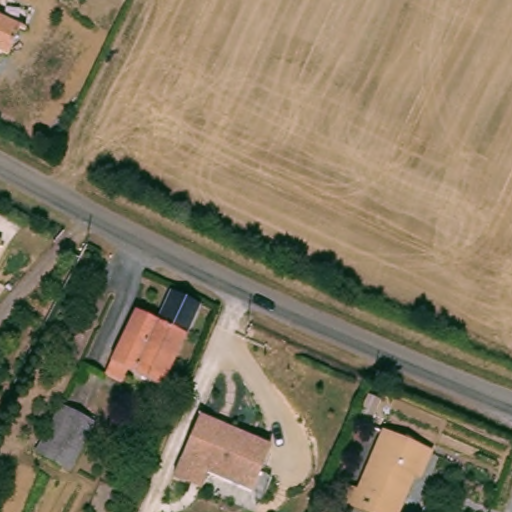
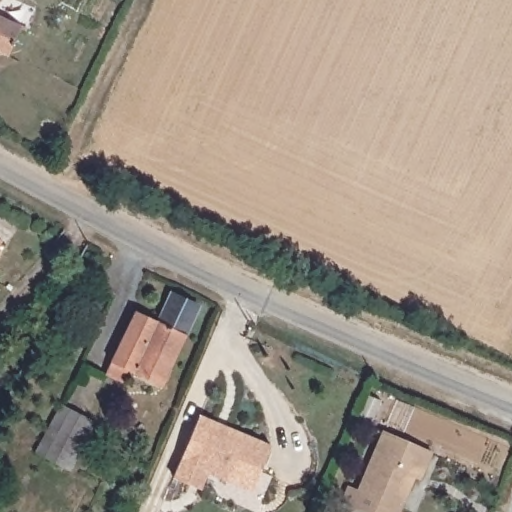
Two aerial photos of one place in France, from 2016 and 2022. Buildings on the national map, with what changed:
unchanged [(0,50),(0,0),(34,0),(9,55),(0,50)]
unchanged [(0,242),(0,240),(1,241),(0,242)]
unchanged [(172,292),(197,305),(159,382),(131,367),(124,380),(107,370),(141,303),(160,312),(172,292)]
unchanged [(72,462),(45,446),(63,412),(91,427),(73,462),(72,462)]
unchanged [(262,477),(273,483),(262,512),(248,512),(176,482),(201,420),(273,451),(262,477)]
unchanged [(423,480),(416,477),(401,512),(371,512),(344,500),(350,485),(360,488),(386,429),(436,450),(423,480)]

